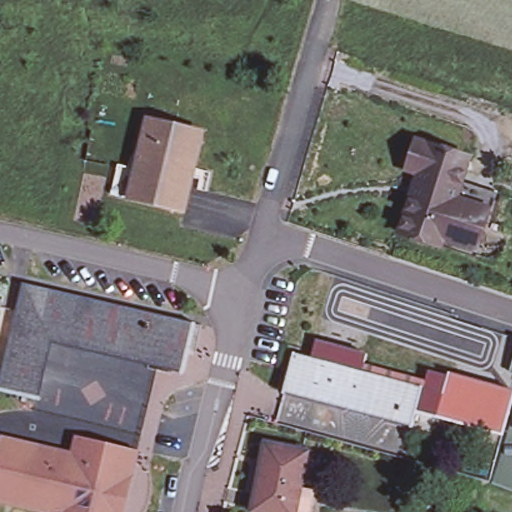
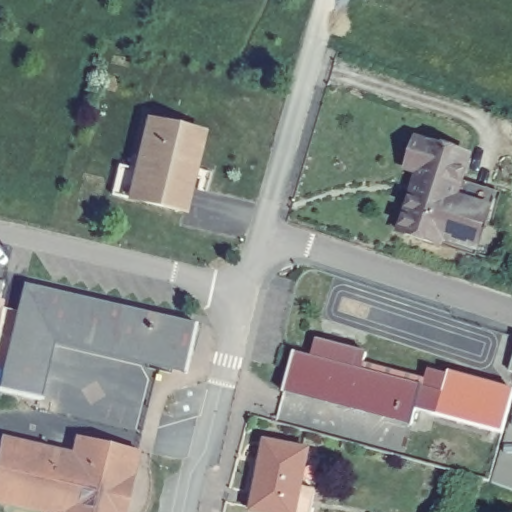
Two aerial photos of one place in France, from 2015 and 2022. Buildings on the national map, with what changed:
unchanged [(177,209),(130,197),(137,168),(143,140),(148,118),(202,131),(197,151),(190,187),(184,210),(177,209)]
unchanged [(443,243),(441,250),(400,237),(420,178),(412,175),(422,146),(470,161),(462,185),(497,197),(492,213),(485,211),(472,252),(443,243)]
unchanged [(0,394),(0,363),(19,287),(59,295),(47,344),(33,403),(0,394)]
unchanged [(59,295),(90,301),(192,323),(182,371),(47,344),(59,295)]
unchanged [(463,376),(488,382),(506,387),(512,389),(512,397),(500,437),(495,436),(447,423),(433,419),(412,413),(407,427),(279,392),(290,354),(307,359),(312,340),(363,355),(360,366),(423,384),(425,373),(445,378),(447,372),(463,376)]
unchanged [(512,369),(512,389),(506,387),(512,369)]
unchanged [(483,480),(495,436),(500,437),(512,397),(512,491),(483,480)]
unchanged [(59,449),(72,452),(76,433),(103,439),(111,441),(138,447),(132,472),(123,512),(50,512),(0,500),(0,438),(0,437),(59,449)]
unchanged [(291,512),(248,512),(260,446),(302,454),(291,512)]

